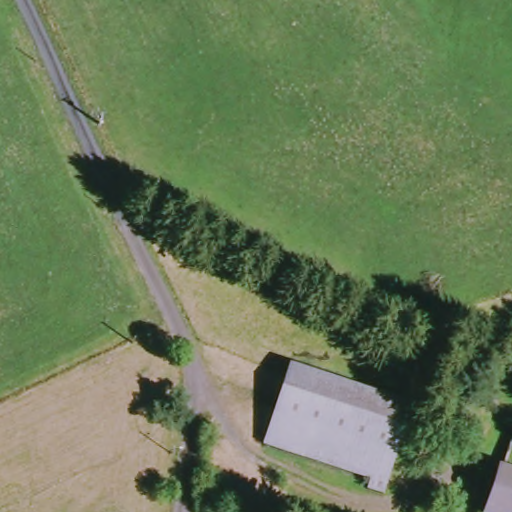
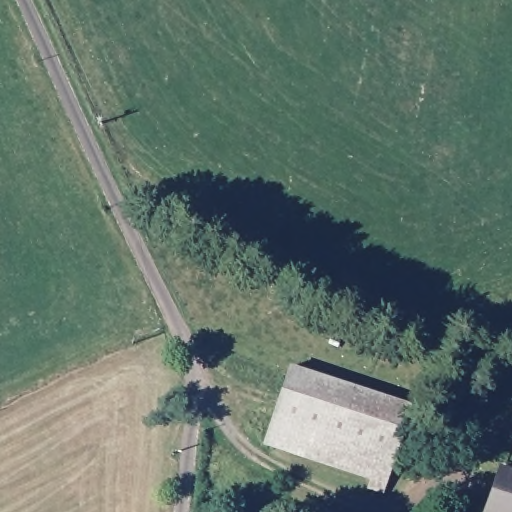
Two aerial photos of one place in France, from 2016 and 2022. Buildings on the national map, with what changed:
unchanged [(392,501),(376,494),(380,483),(274,451),(298,372),(419,410),(392,501)]
unchanged [(500,479),(479,472),(496,426),(512,431),(512,512),(489,512),(500,479)]

